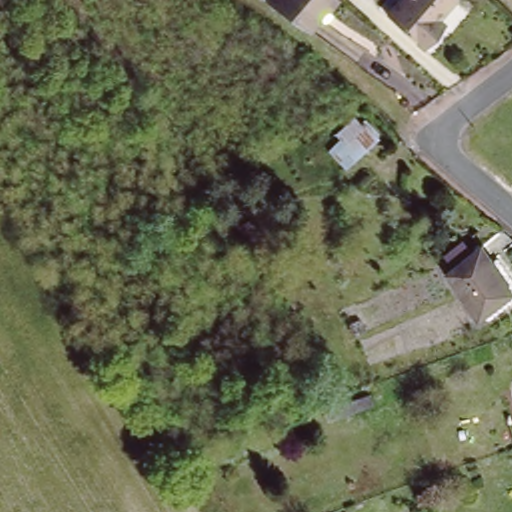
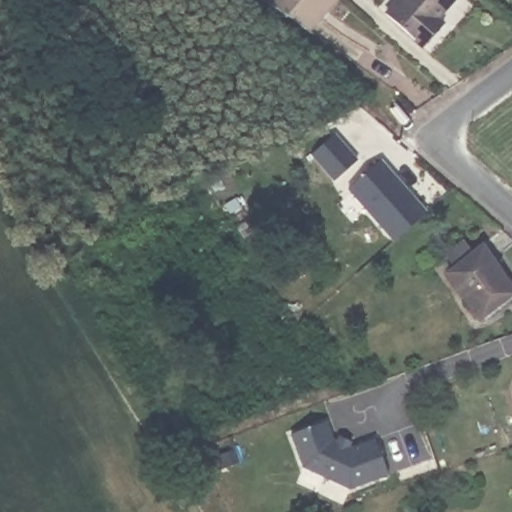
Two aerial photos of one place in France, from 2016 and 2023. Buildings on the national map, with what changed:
unchanged [(326,7),(323,5),(304,27),(264,0),(333,0),(326,7)]
unchanged [(432,13),(439,20),(418,43),(380,8),(388,0),(443,0),(432,13)]
demolished [(378,138),(343,170),(326,150),(337,139),(333,134),(353,117),(360,124),(362,121),(378,138)]
new [(347,190),(379,162),(425,212),(392,241),(347,190)]
unchanged [(445,276),(454,270),(445,258),(462,245),(472,257),(482,250),(512,289),(512,297),(478,322),(445,276)]
new [(350,488),(305,468),(292,432),(328,420),(335,439),(339,435),(352,440),(349,447),(375,439),(388,476),(350,488)]

